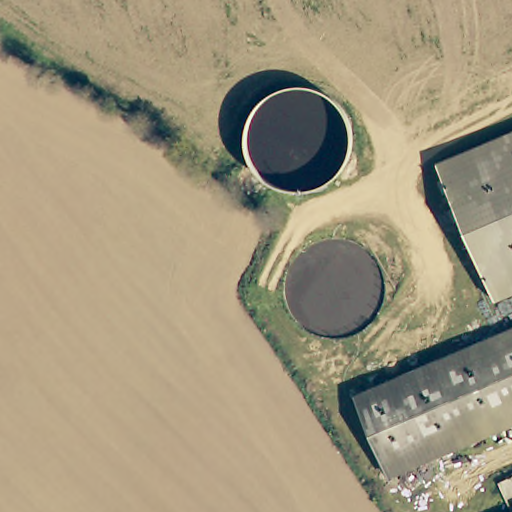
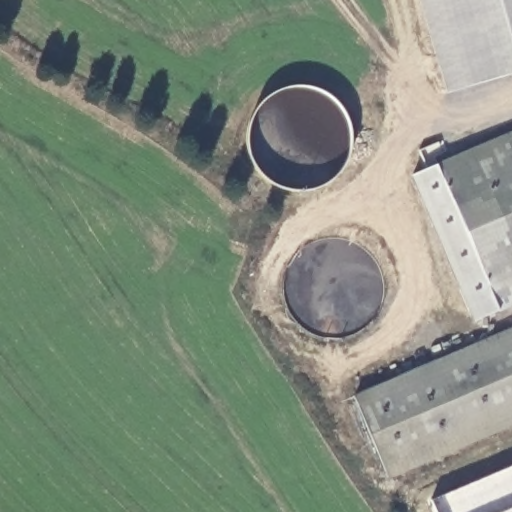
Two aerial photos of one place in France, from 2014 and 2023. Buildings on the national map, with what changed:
new [(420,0),(512,0),(512,74),(447,92),(420,0)]
unchanged [(478,314),(418,171),(512,133),(512,299),(478,314)]
unchanged [(354,396),(512,330),(512,416),(384,470),(354,396)]

